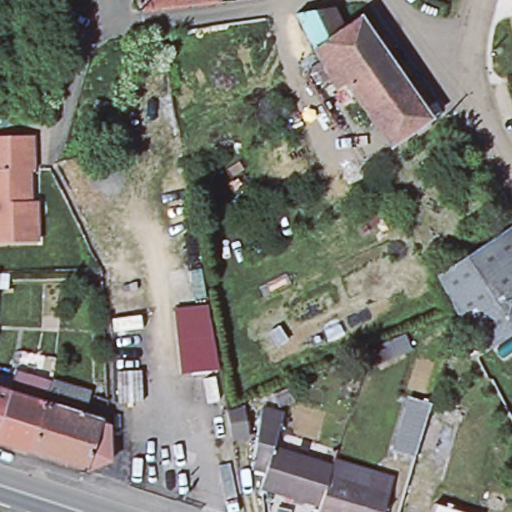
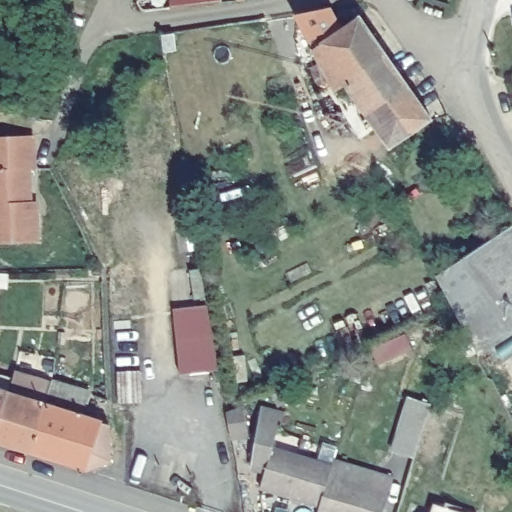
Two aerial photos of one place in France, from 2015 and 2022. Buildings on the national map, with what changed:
unchanged [(355,102),(342,111),(328,91),(335,87),(283,12),(327,9),(333,21),(361,15),(385,52),(400,74),(355,102)]
unchanged [(512,31),(512,47),(508,32),(512,31)]
unchanged [(400,74),(430,119),(386,149),(355,102),(400,74)]
unchanged [(33,213),(33,237),(0,237),(0,132),(30,132),(30,166),(27,166),(27,198),(33,198),(33,213)]
unchanged [(480,352),(460,316),(458,311),(438,273),(512,223),(512,224),(512,330),(480,352)]
unchanged [(215,366),(176,370),(168,307),(200,303),(215,366)]
unchanged [(92,469),(33,449),(0,438),(0,430),(0,385),(0,371),(18,377),(22,367),(25,357),(60,370),(57,380),(92,393),(85,415),(103,422),(102,410),(110,412),(111,425),(114,426),(115,460),(92,469)]
unchanged [(393,451),(410,396),(432,402),(415,457),(393,451)]
unchanged [(265,456),(250,452),(258,403),(278,410),(272,434),(332,453),(329,462),(320,495),(260,475),(265,456)]
unchanged [(329,462),(390,481),(380,512),(346,512),(318,503),(320,495),(329,462)]
unchanged [(472,512),(427,512),(432,498),(472,512)]

